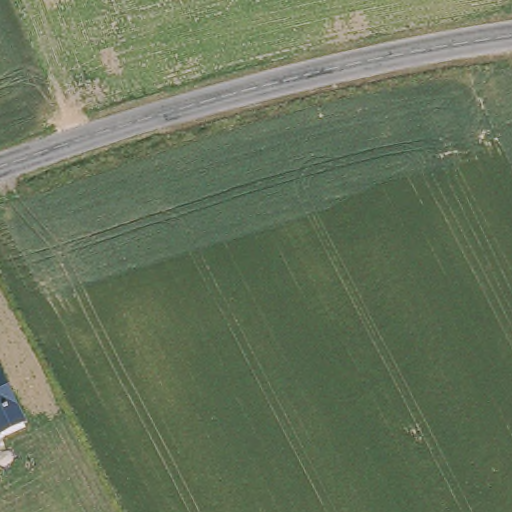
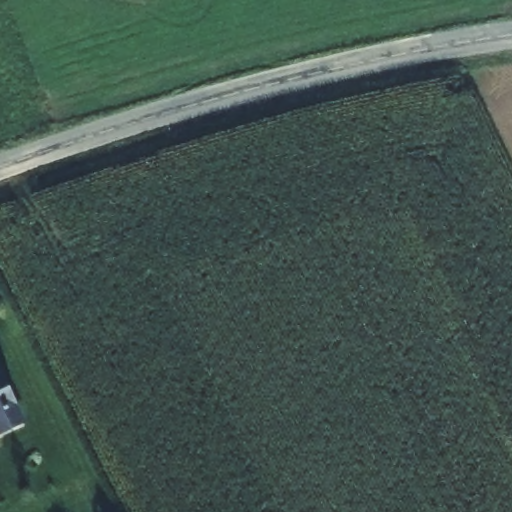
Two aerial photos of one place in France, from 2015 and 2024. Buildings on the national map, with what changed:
unchanged [(25,420),(0,431),(0,369),(25,420)]

